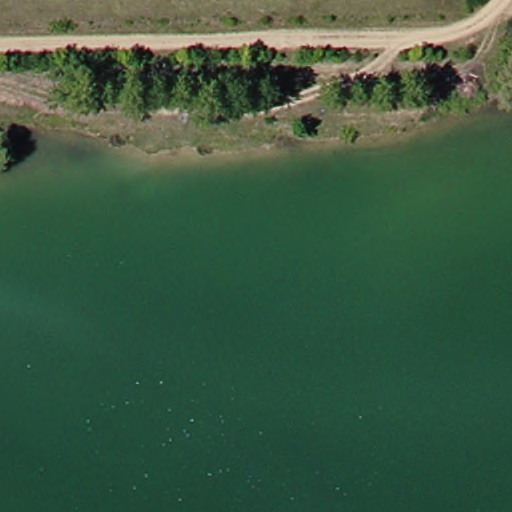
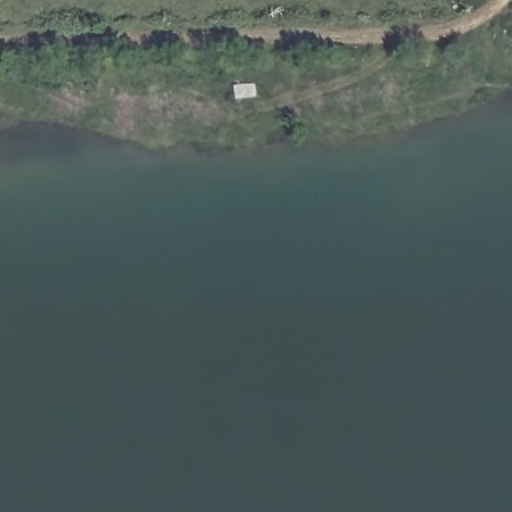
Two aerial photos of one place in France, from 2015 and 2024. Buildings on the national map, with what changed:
[]

